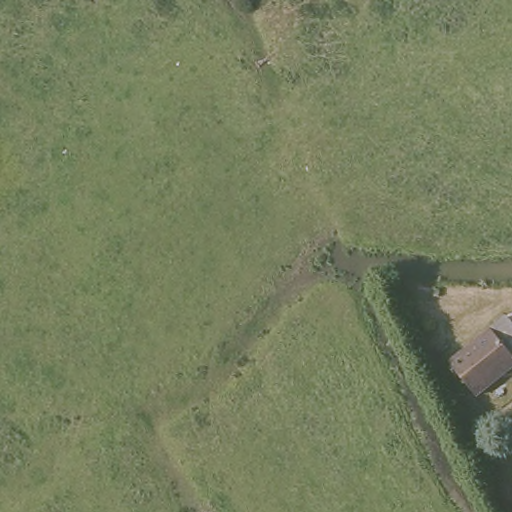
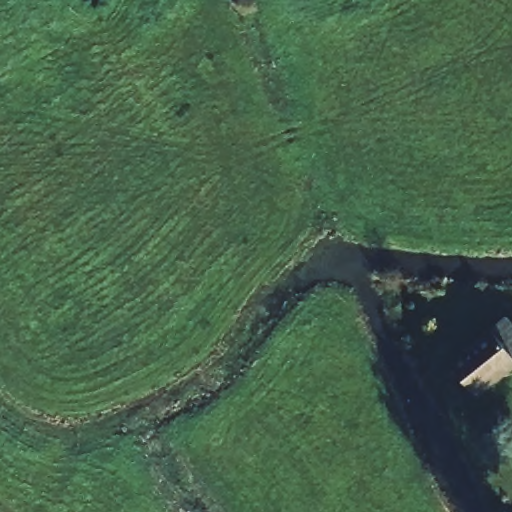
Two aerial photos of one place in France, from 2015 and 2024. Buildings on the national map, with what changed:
unchanged [(512,385),(485,406),(450,360),(510,315),(512,318),(512,385)]

